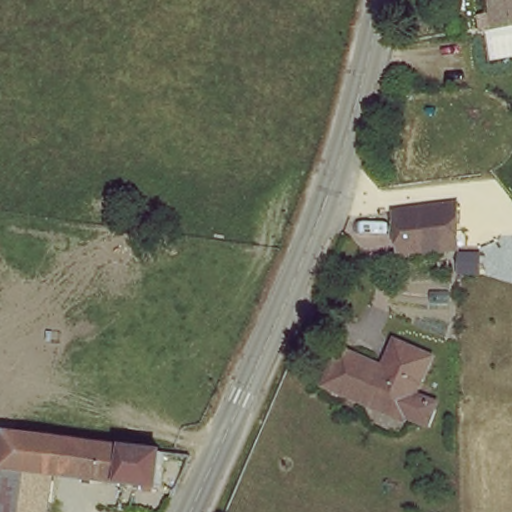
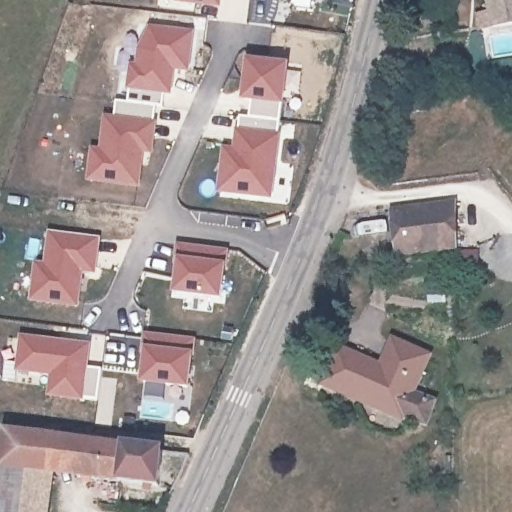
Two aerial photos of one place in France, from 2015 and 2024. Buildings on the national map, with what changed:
new [(222,0),(220,8),(175,2),(175,0),(222,0)]
unchanged [(495,0),(512,0),(512,28),(500,31),(499,21),(495,0)]
new [(133,34),(137,36),(141,25),(196,30),(191,73),(177,72),(172,97),(127,94),(133,54),(125,52),(133,34)]
new [(248,59),(290,64),(284,107),(250,103),(242,102),(248,59)]
new [(105,116),(113,116),(116,100),(158,102),(158,121),(155,157),(146,157),(142,190),(89,183),(93,147),(101,147),(105,116)]
new [(220,144),(232,146),(236,115),(248,117),(250,103),(284,107),(277,181),(274,201),(214,194),(220,144)]
unchanged [(454,247),(398,255),(392,212),(454,204),(454,207),(454,219),(454,247)]
new [(32,261),(43,262),(46,231),(101,237),(96,276),(85,275),(80,308),(28,302),(32,261)]
new [(178,242),(229,249),(223,302),(173,296),(178,242)]
new [(196,338),(191,389),(143,388),(142,332),(196,338)]
new [(19,334),(93,343),(90,367),(103,368),(99,403),(44,397),(47,377),(15,373),(19,334)]
unchanged [(437,362),(422,397),(444,407),(436,428),(414,420),(411,423),(333,391),(349,354),(380,367),(392,372),(403,346),(437,362)]
unchanged [(53,477),(48,512),(0,512),(0,501),(8,437),(41,441),(38,475),(53,477)]
new [(0,502),(0,440),(8,441),(0,502)]
unchanged [(53,477),(38,475),(41,441),(80,446),(78,480),(53,477)]
unchanged [(158,488),(78,480),(80,446),(163,456),(158,488)]

